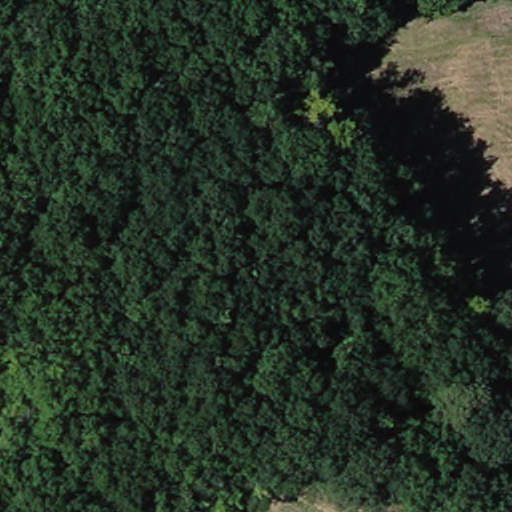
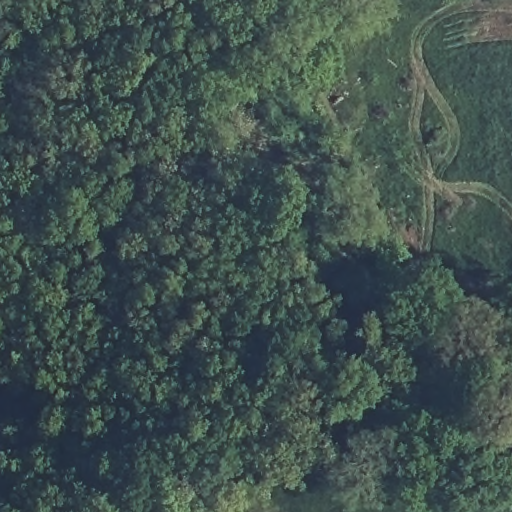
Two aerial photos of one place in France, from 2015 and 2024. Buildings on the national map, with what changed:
[]

